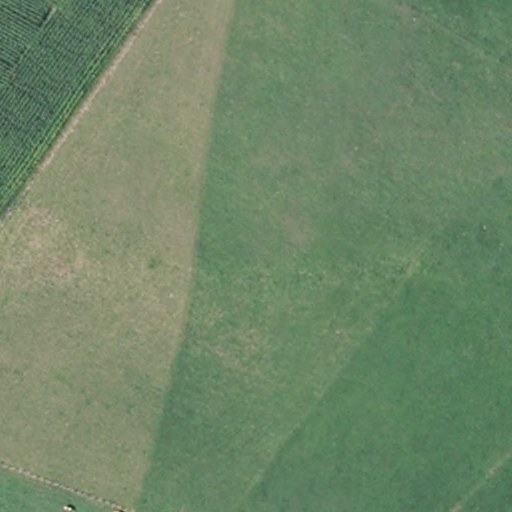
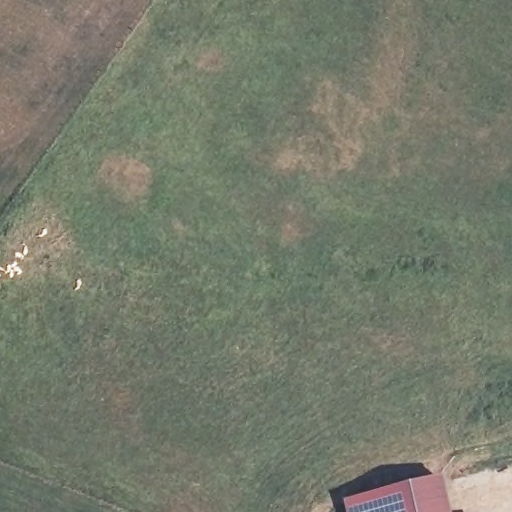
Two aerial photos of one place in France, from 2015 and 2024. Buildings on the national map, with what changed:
new [(444,512),(342,512),(339,502),(434,477),(444,512)]

